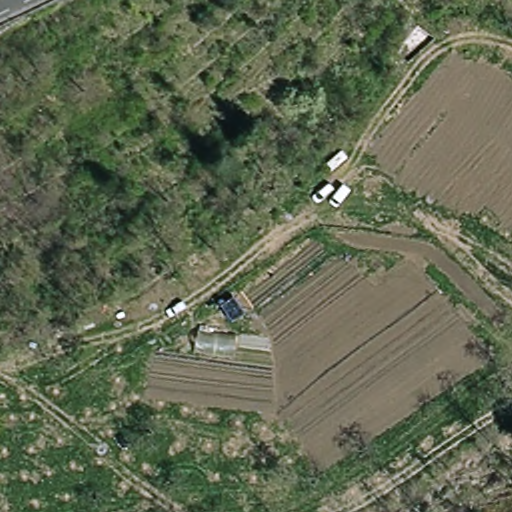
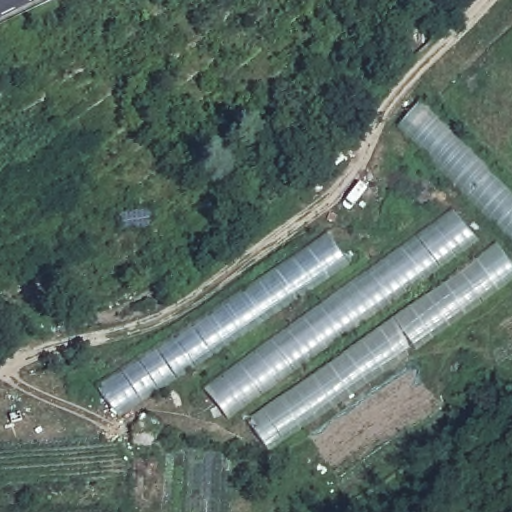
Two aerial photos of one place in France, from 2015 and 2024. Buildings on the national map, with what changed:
new [(398,125),(418,102),(512,194),(512,240),(398,125)]
new [(451,208),(484,250),(496,242),(512,264),(512,278),(269,451),(240,410),(228,418),(204,387),(451,208)]
new [(348,264),(119,417),(96,385),(327,233),(348,264)]

